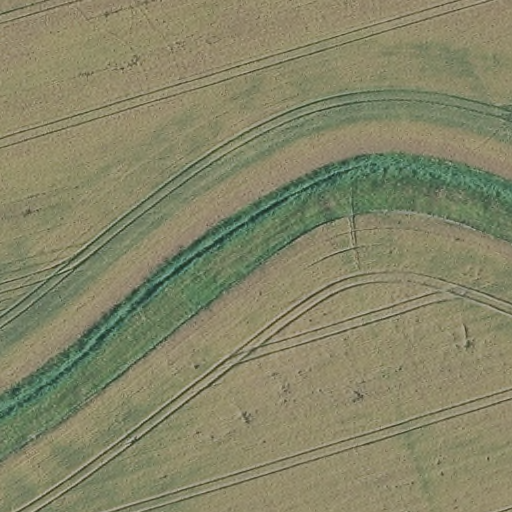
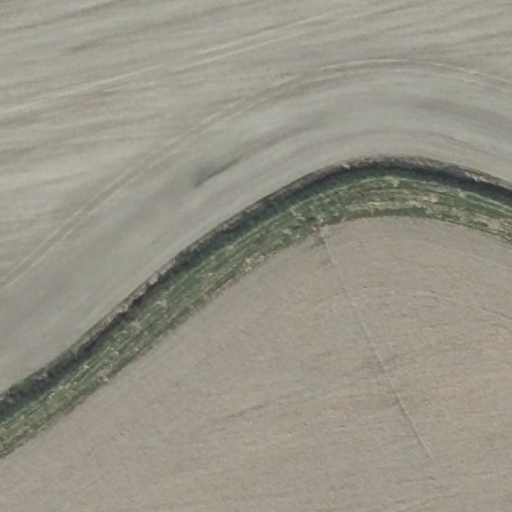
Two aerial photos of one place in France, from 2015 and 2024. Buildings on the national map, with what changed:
[]

